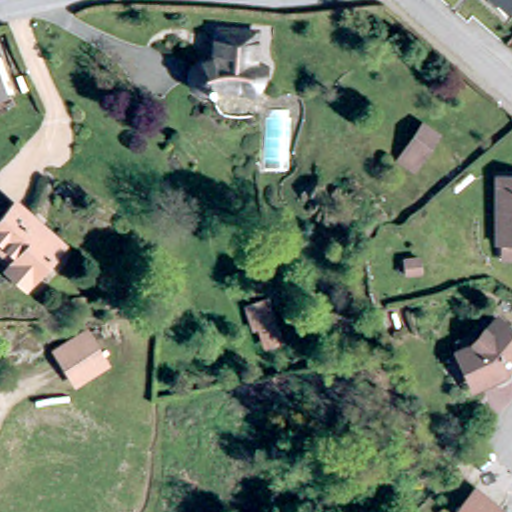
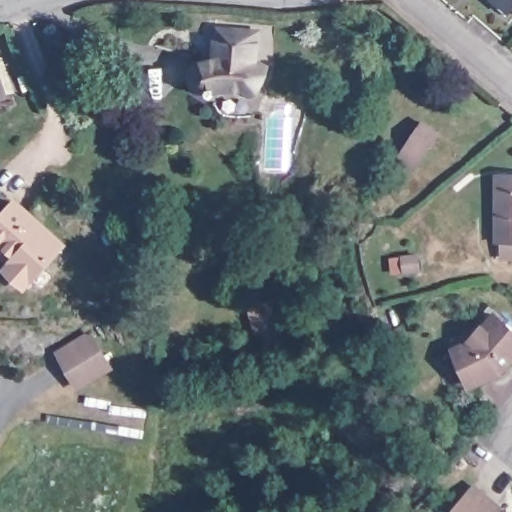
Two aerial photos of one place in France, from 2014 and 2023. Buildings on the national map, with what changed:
unchanged [(512,5),(505,15),(486,1),(486,0),(512,0),(512,5)]
unchanged [(220,91),(220,99),(213,91),(205,91),(198,87),(197,72),(205,66),(218,66),(221,64),(222,31),(260,34),(261,63),(271,69),(260,95),(220,91)]
unchanged [(10,94),(0,97),(0,98),(0,64),(10,94)]
unchanged [(0,113),(0,105),(2,112),(0,113)]
unchanged [(398,161),(405,150),(422,125),(436,134),(419,159),(412,170),(398,161)]
unchanged [(500,178),(512,178),(512,259),(504,259),(505,245),(500,245),(500,178)]
unchanged [(13,269),(17,265),(20,261),(0,246),(0,225),(16,204),(65,240),(35,279),(32,284),(13,269)]
unchanged [(417,255),(419,270),(404,272),(402,257),(417,255)]
unchanged [(293,341),(280,343),(276,323),(271,298),(280,297),(287,321),(289,320),(293,341)]
unchanged [(466,385),(450,352),(451,350),(457,348),(473,339),(490,320),(481,313),(487,306),(512,328),(512,356),(502,367),(493,372),(475,381),(466,385)]
unchanged [(55,352),(85,331),(103,355),(74,375),(55,352)]
unchanged [(498,512),(460,512),(475,493),(498,512)]

